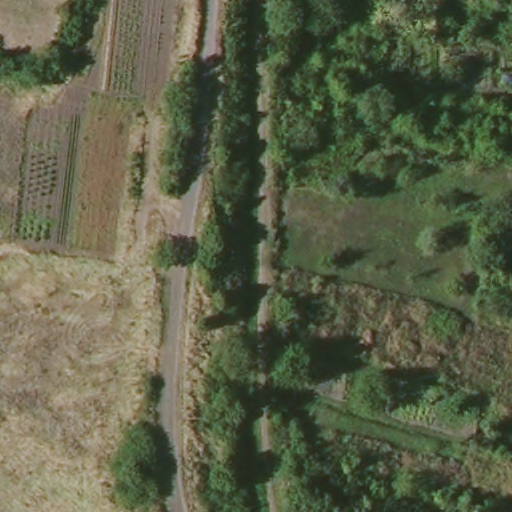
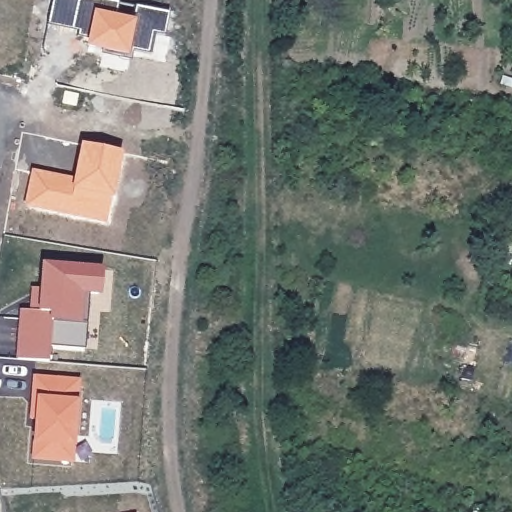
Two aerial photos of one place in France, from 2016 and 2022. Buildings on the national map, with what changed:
new [(106,0),(119,2),(115,17),(132,21),(135,6),(169,13),(164,37),(152,35),(148,55),(125,51),(125,55),(88,47),(90,37),(77,34),(78,30),(47,24),(52,0),(106,0)]
unchanged [(272,1),(272,0),(296,0),(295,3),(272,1)]
new [(60,92),(72,94),(70,105),(57,102),(60,92)]
new [(34,172),(77,181),(83,145),(122,152),(107,222),(27,206),(34,172)]
unchanged [(512,264),(491,263),(495,242),(512,243),(512,264)]
new [(42,312),(60,313),(62,282),(74,283),(75,267),(121,271),(119,296),(102,295),(99,327),(106,327),(104,352),(70,350),(69,363),(38,362),(42,312)]
new [(35,378),(69,381),(69,386),(78,387),(72,462),(34,458),(36,427),(39,427),(40,420),(32,418),(35,378)]

